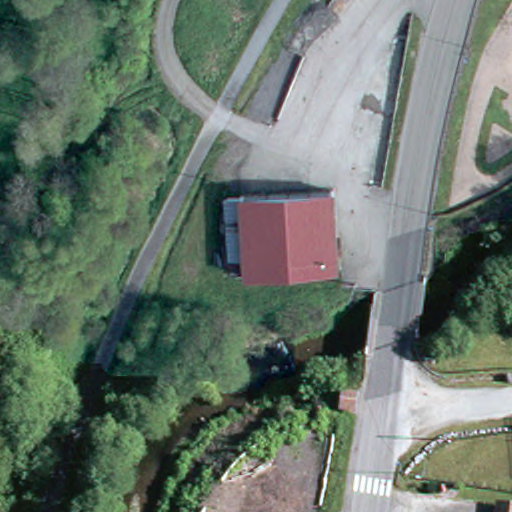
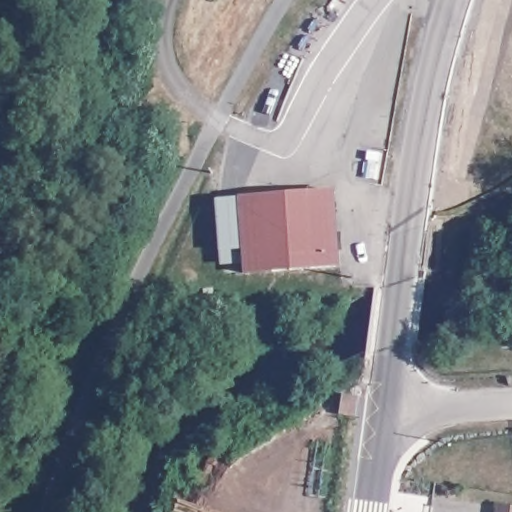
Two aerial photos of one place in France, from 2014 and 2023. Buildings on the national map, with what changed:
unchanged [(250,273),(245,273),(245,263),(228,264),(226,200),(228,200),(242,199),(241,196),(260,195),(332,190),(335,240),(337,266),(250,273)]
unchanged [(352,400),(352,411),(342,410),(342,399),(352,400)]
unchanged [(512,507),(512,512),(492,512),(495,503),(512,507)]

